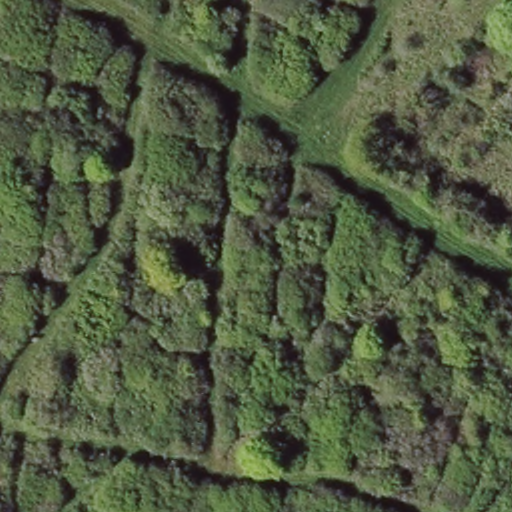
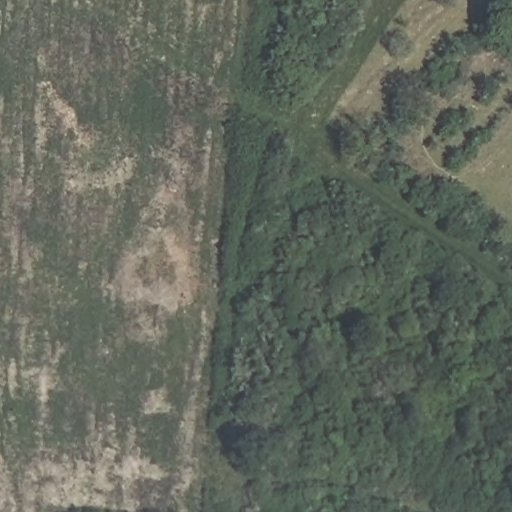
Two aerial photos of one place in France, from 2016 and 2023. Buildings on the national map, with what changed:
[]

